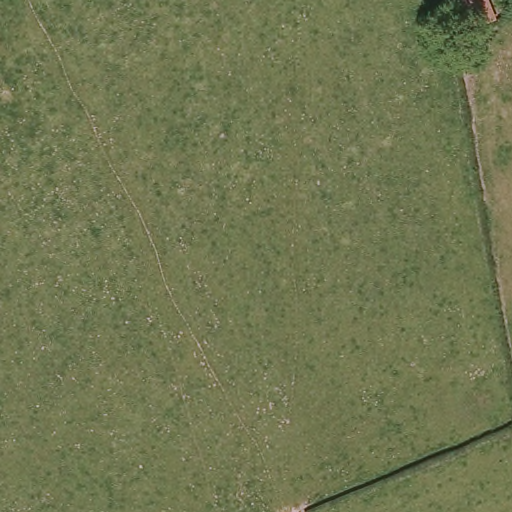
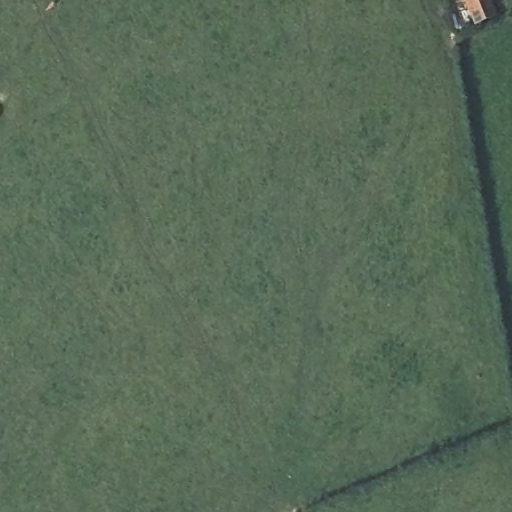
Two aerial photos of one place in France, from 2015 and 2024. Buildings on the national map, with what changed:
unchanged [(492,17),(472,22),(462,25),(457,0),(488,0),(492,17)]

